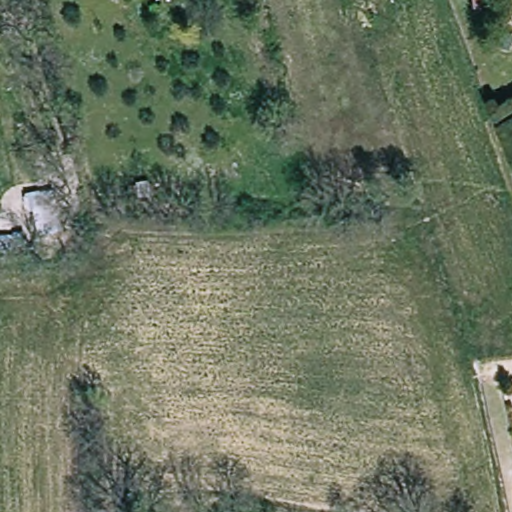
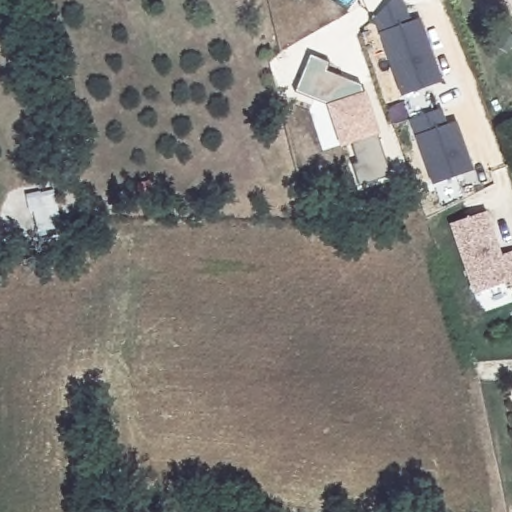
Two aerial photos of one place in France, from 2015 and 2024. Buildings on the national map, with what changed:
new [(392,0),(398,6),(405,25),(415,22),(438,84),(399,99),(369,21),(389,0),(392,0)]
new [(378,133),(390,176),(361,186),(353,164),(359,162),(353,143),(341,147),(327,104),(296,92),(311,57),(329,64),(327,70),(361,85),(363,92),(367,91),(381,134),(378,133)]
new [(438,111),(444,127),(453,123),(472,173),(432,188),(408,122),(438,111)]
unchanged [(32,209),(44,206),(49,231),(37,233),(32,209)]
new [(502,255),(512,251),(512,287),(511,288),(508,281),(474,293),(449,224),(487,212),(502,255)]

